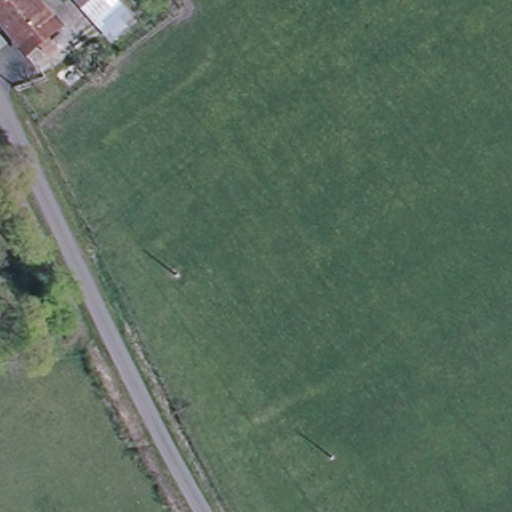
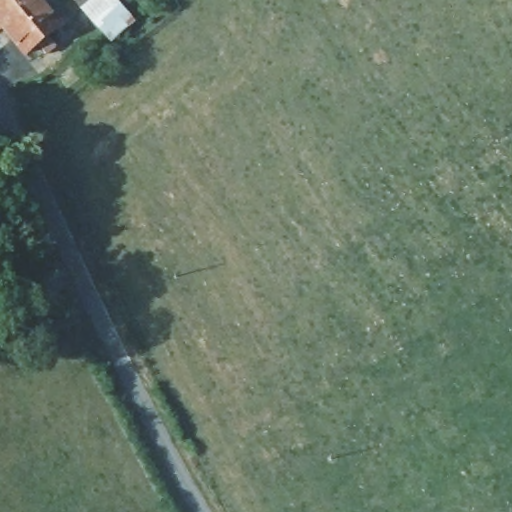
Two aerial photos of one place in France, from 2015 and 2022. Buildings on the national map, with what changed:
unchanged [(16,53),(0,29),(0,0),(32,0),(52,29),(16,53)]
unchanged [(95,22),(74,0),(117,0),(118,1),(95,22)]

